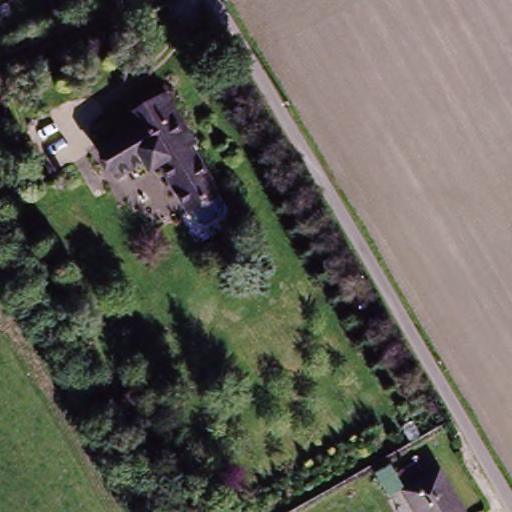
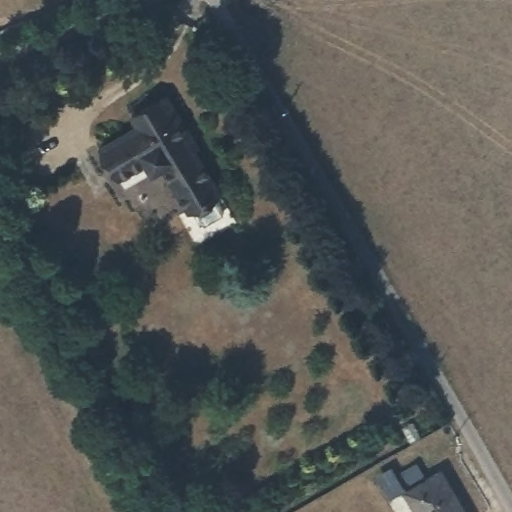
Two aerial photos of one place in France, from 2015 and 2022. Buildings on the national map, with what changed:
unchanged [(163,92),(192,143),(187,147),(214,195),(211,197),(218,210),(217,216),(202,225),(197,223),(189,210),(186,212),(160,165),(140,162),(114,176),(96,143),(135,123),(129,112),(163,92)]
unchanged [(438,478),(457,512),(411,512),(403,497),(438,478)]

